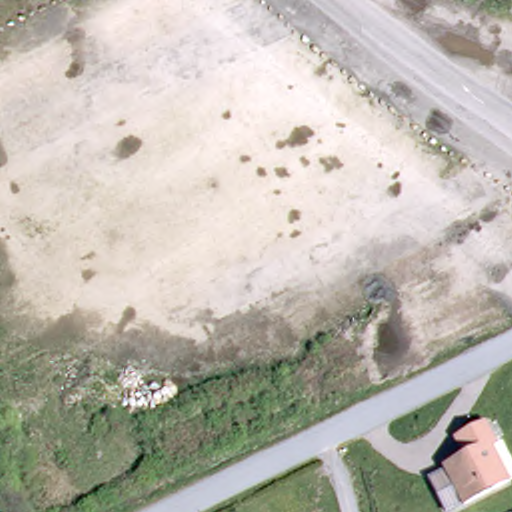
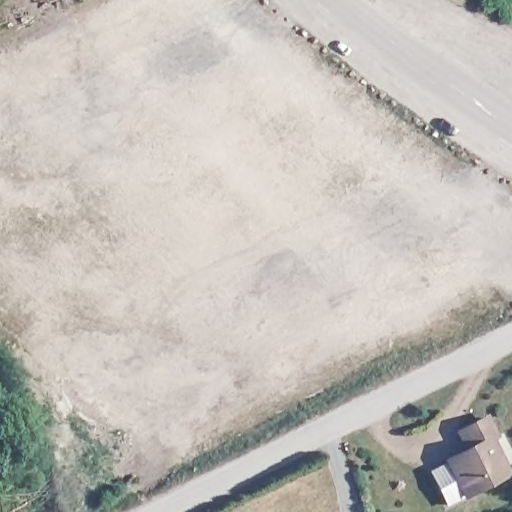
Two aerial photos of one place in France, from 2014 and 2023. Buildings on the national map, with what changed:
unchanged [(507,433),(502,436),(512,458),(512,477),(460,500),(444,465),(481,448),(472,429),(499,416),(507,433)]

